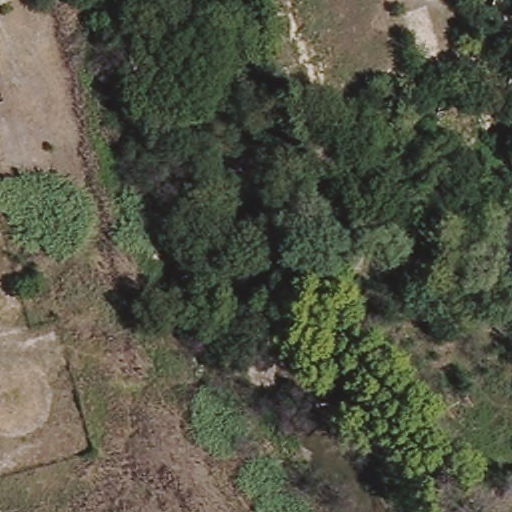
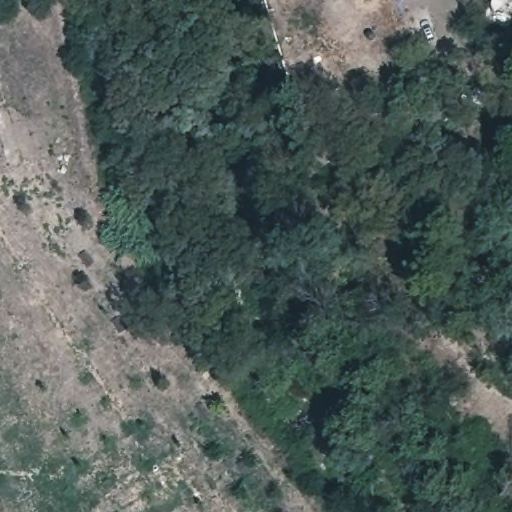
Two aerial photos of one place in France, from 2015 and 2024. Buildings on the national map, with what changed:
unchanged [(473,42),(487,4),(476,0),(512,0),(512,57),(473,42)]
unchanged [(463,83),(479,86),(469,105),(454,97),(463,83)]
unchanged [(478,112),(488,90),(502,95),(492,121),(478,112)]

